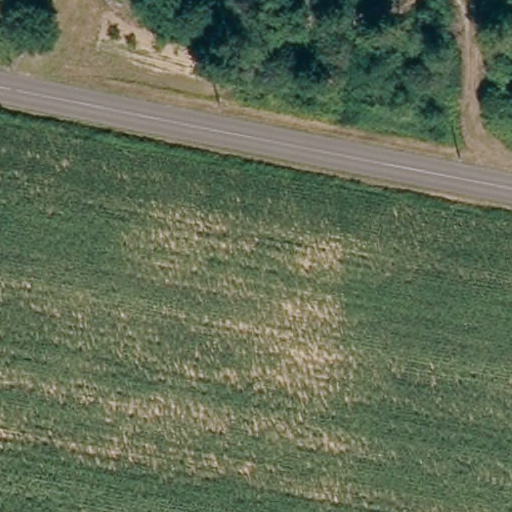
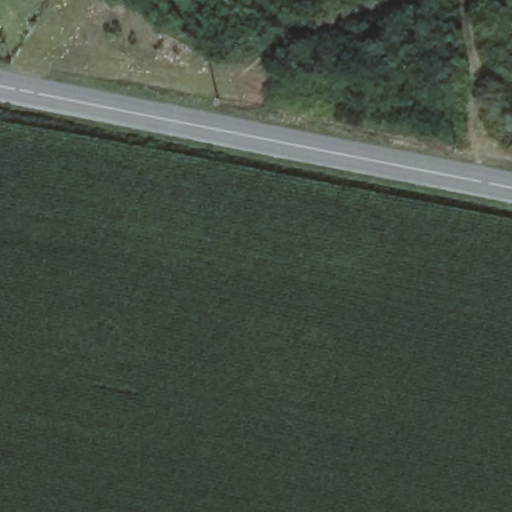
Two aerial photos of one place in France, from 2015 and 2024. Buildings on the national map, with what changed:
[]

